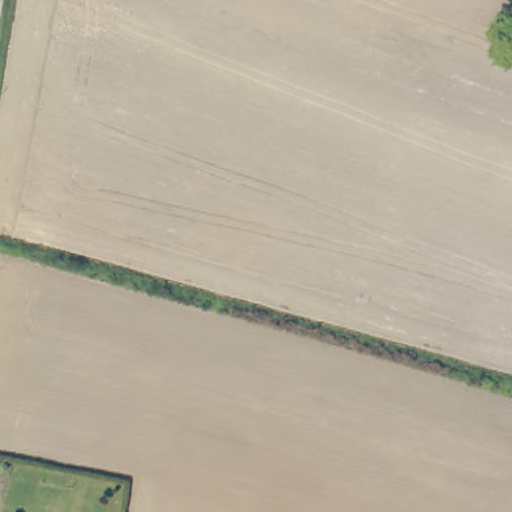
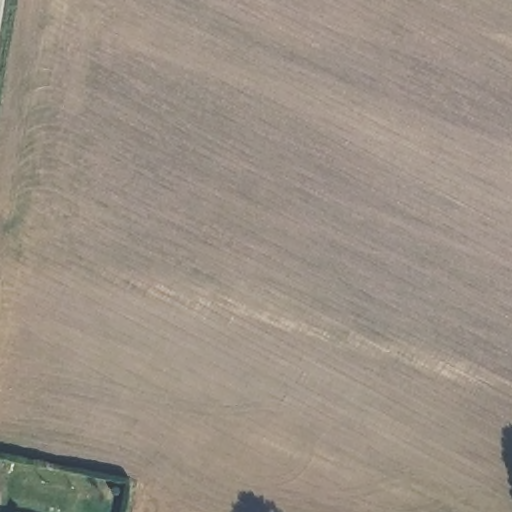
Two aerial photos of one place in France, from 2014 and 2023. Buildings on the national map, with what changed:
[]

